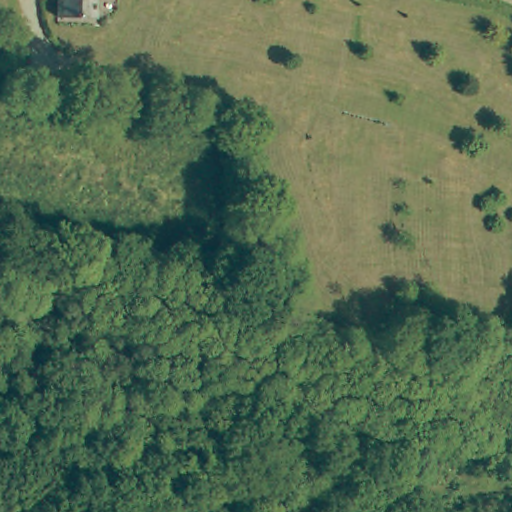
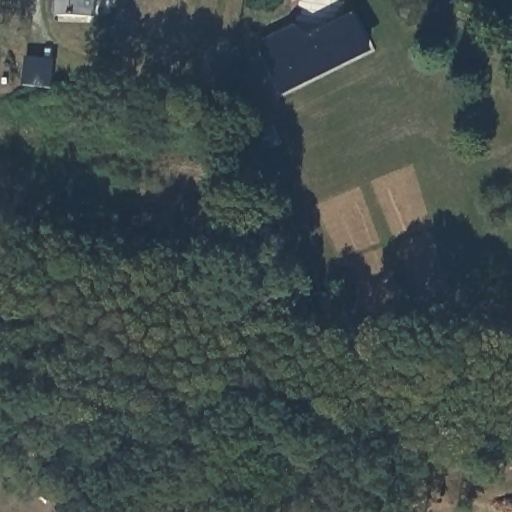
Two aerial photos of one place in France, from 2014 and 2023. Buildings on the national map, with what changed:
unchanged [(52,17),(53,0),(91,0),(90,21),(52,17)]
new [(376,53),(283,97),(256,43),(295,25),(310,36),(356,13),(376,53)]
new [(53,89),(14,85),(16,56),(26,57),(56,61),(53,89)]

